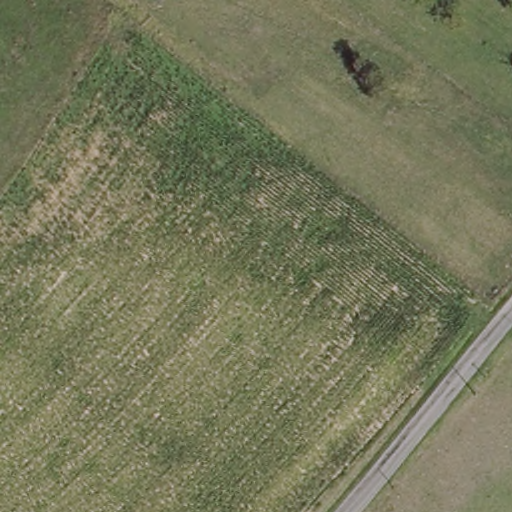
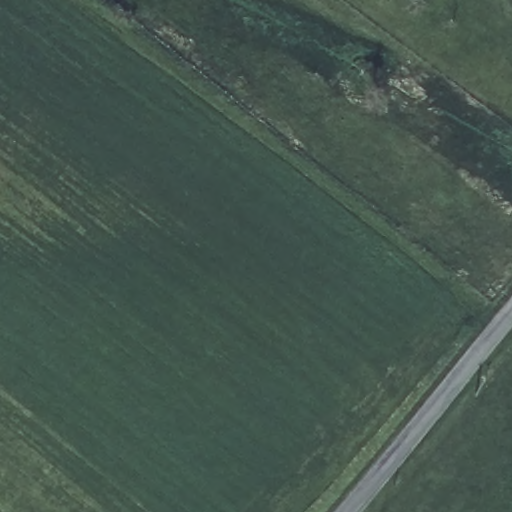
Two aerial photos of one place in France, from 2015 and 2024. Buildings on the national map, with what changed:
[]

